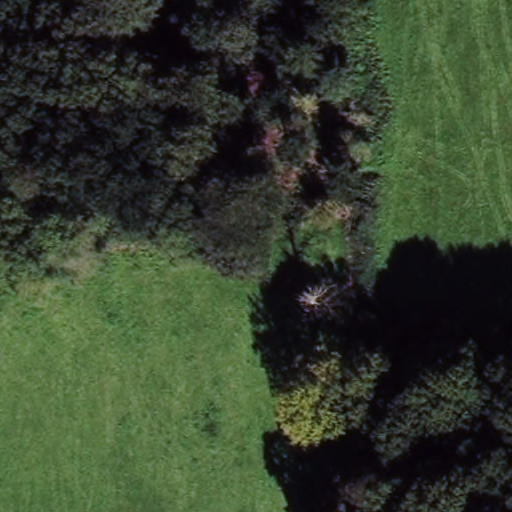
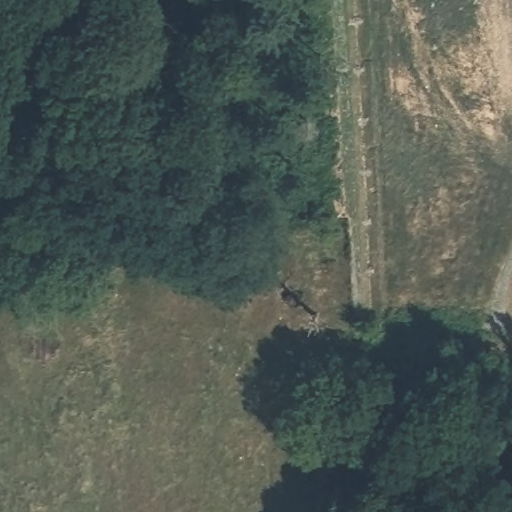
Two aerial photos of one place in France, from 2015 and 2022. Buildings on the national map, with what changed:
[]

